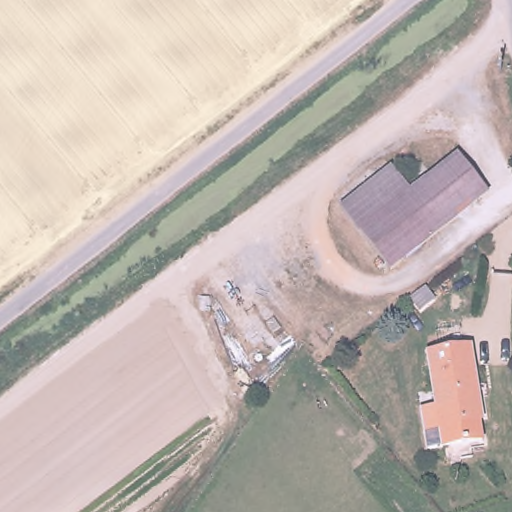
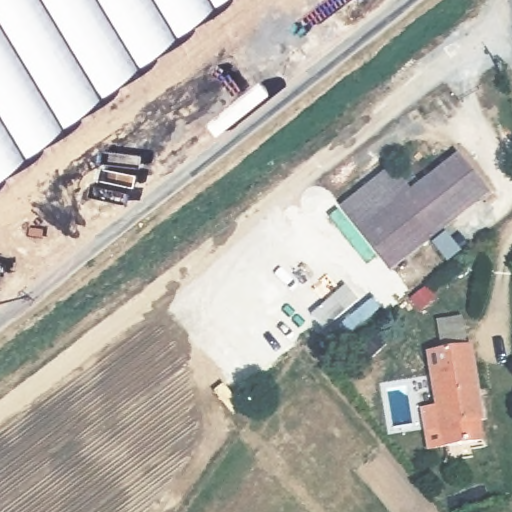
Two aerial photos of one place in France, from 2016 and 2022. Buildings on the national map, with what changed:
new [(0,174),(0,0),(217,0),(0,174)]
unchanged [(461,154),(491,193),(391,270),(343,207),(393,168),(412,191),(429,178),(461,154)]
unchanged [(477,419),(480,438),(423,447),(417,407),(432,404),(423,353),(469,346),(476,389),(481,418),(477,419)]

